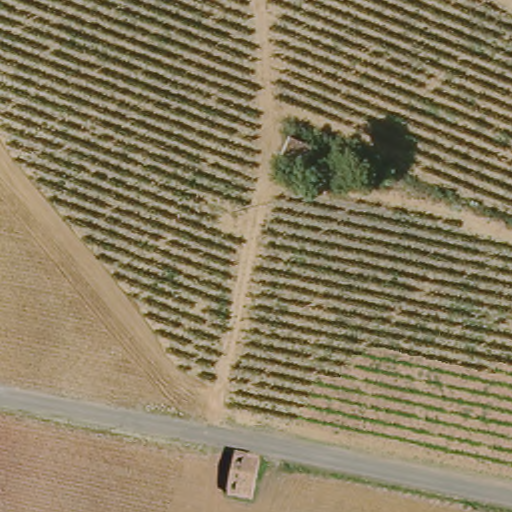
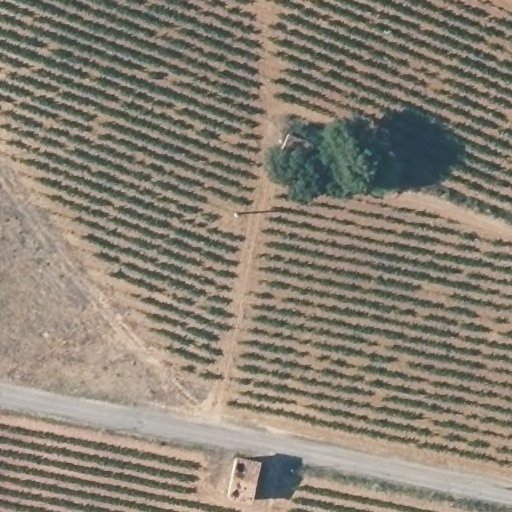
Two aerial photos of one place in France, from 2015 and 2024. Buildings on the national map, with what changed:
unchanged [(273,163),(276,155),(269,150),(274,146),(280,150),(286,132),(311,143),(298,174),(273,163)]
unchanged [(257,461),(252,490),(228,487),(232,456),(257,461)]

